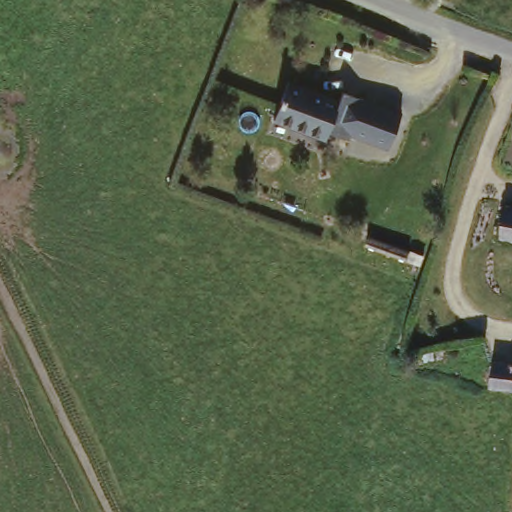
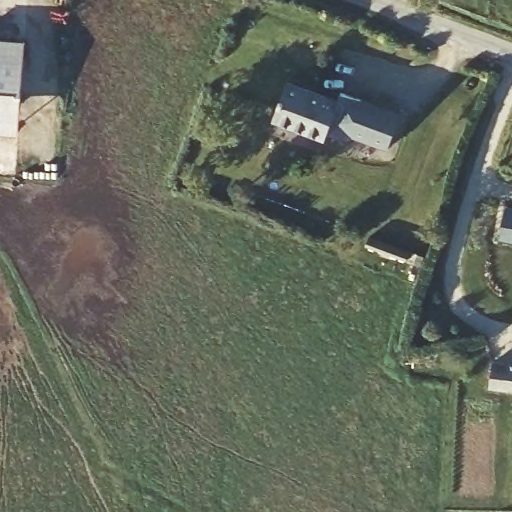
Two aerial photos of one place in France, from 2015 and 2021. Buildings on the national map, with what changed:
new [(23,63),(19,134),(0,132),(0,39),(25,41),(23,63)]
unchanged [(328,131),(325,139),(270,117),(285,81),(339,103),(344,90),(398,111),(383,147),(347,132),(345,137),(328,131)]
unchanged [(500,245),(503,231),(507,214),(512,215),(512,247),(500,245)]
unchanged [(488,389),(491,366),(512,368),(512,386),(511,392),(488,389)]

